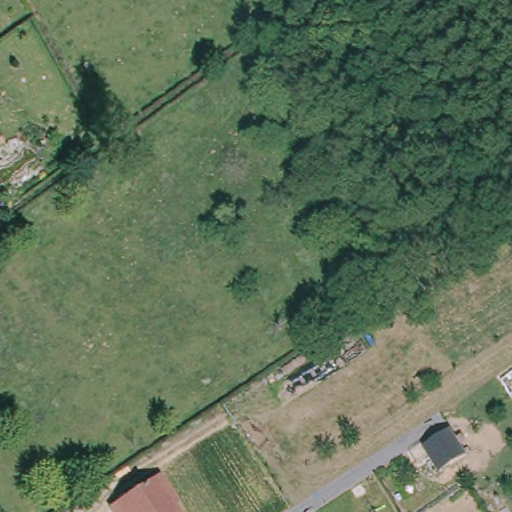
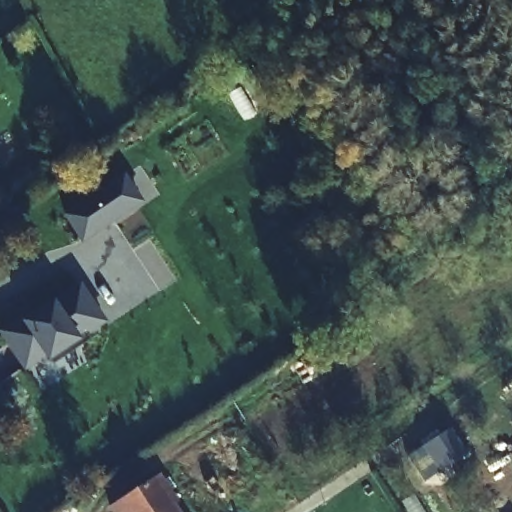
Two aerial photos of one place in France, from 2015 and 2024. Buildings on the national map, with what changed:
new [(82,243),(63,215),(125,172),(145,201),(82,243)]
new [(25,371),(0,334),(0,329),(47,303),(81,280),(97,305),(90,309),(102,325),(48,361),(45,357),(25,371)]
unchanged [(450,429),(467,455),(438,474),(422,447),(450,429)]
unchanged [(161,471),(182,502),(177,505),(182,512),(111,512),(108,507),(161,471)]

